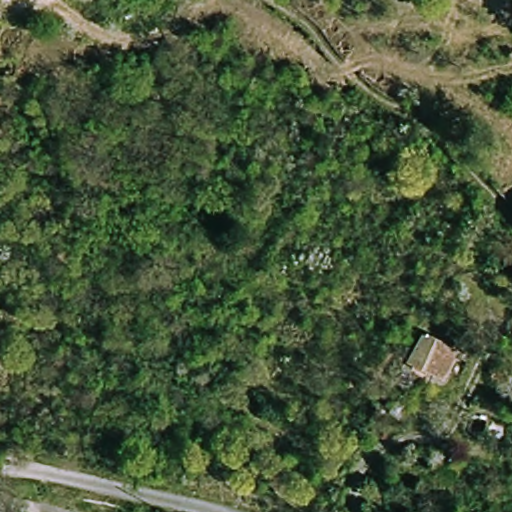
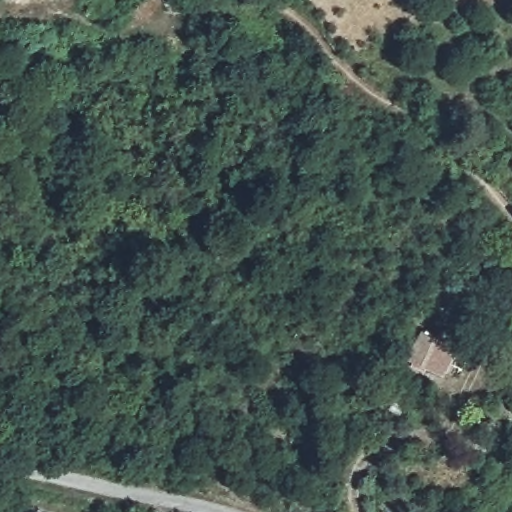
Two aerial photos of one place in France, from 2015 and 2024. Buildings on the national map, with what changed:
unchanged [(413,351),(418,343),(424,331),(458,349),(450,369),(413,351)]

